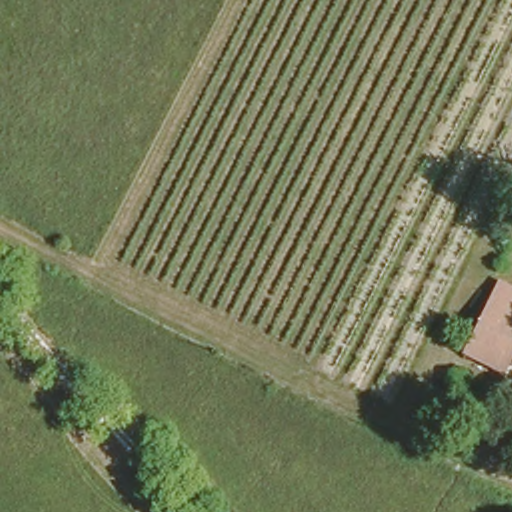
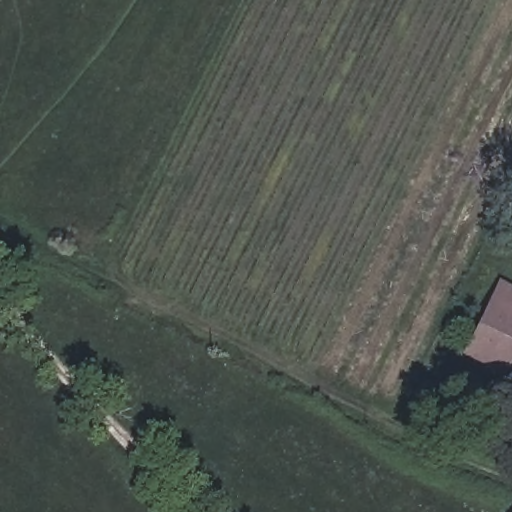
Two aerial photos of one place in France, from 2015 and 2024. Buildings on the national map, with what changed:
unchanged [(495,284),(512,293),(512,344),(498,374),(459,355),(495,284)]

